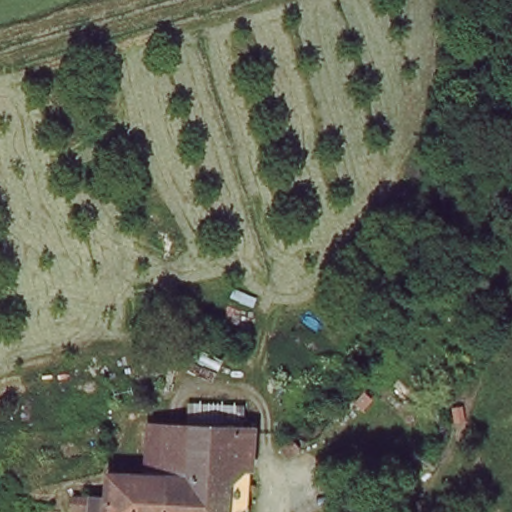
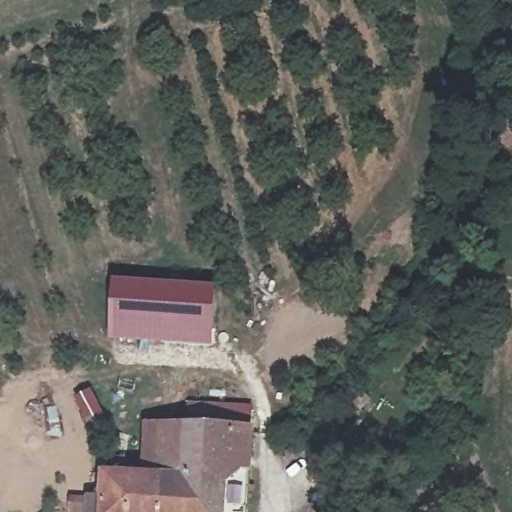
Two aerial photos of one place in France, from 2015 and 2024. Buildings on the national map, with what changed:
new [(217,287),(215,348),(110,341),(114,280),(217,287)]
unchanged [(100,503),(103,472),(139,471),(145,404),(187,405),(238,408),(237,429),(268,430),(266,461),(264,488),(246,488),(244,512),(228,512),(220,511),(220,512),(65,512),(66,502),(100,503)]

